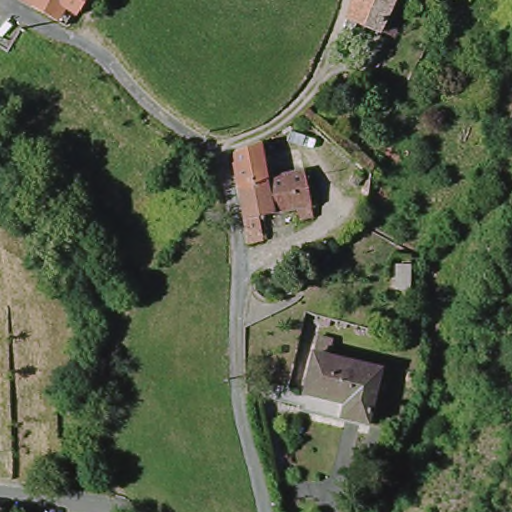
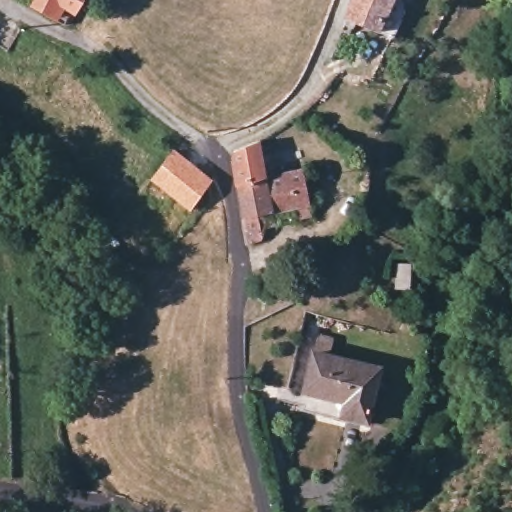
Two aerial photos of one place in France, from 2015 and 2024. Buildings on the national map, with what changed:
unchanged [(70,9),(60,3),(47,22),(29,9),(32,0),(81,0),(75,11),(72,10),(70,9)]
unchanged [(349,21),(358,0),(396,0),(384,32),(349,21)]
unchanged [(300,222),(295,206),(267,215),(262,217),(265,229),(265,232),(266,235),(266,238),(267,241),(251,246),(243,183),(239,151),(265,143),(271,175),(296,167),(311,219),(300,222)]
new [(215,180),(191,210),(152,179),(176,149),(215,180)]
unchanged [(287,387),(304,390),(312,352),(378,366),(367,417),(340,412),(285,400),(287,387)]

